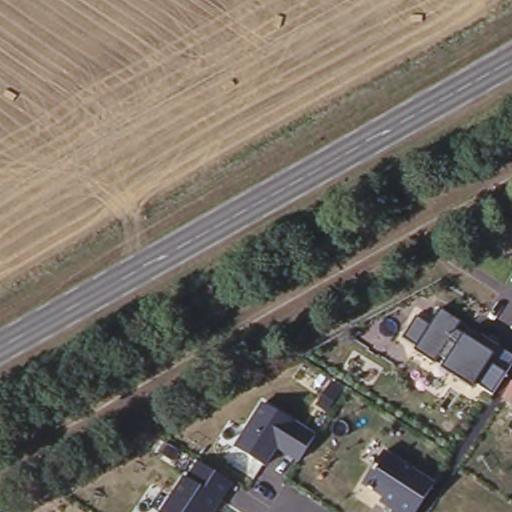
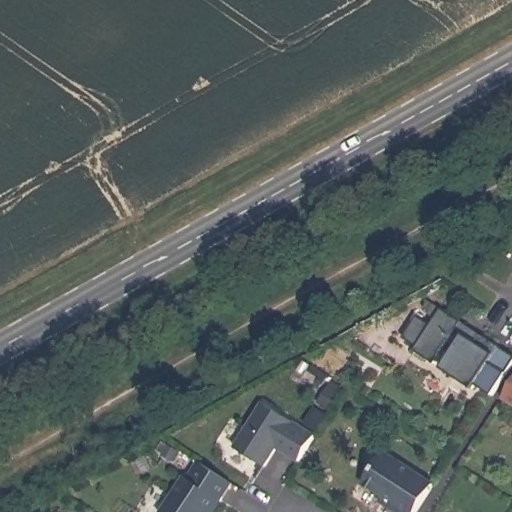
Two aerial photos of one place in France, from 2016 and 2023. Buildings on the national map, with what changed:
unchanged [(418,345),(402,335),(415,314),(432,325),(441,309),(460,323),(457,330),(477,341),(484,336),(500,346),(512,355),(512,364),(493,392),(477,382),(475,386),(445,368),(451,357),(444,355),(436,361),(415,349),(418,345)]
unchanged [(512,391),(512,405),(506,401),(512,391)]
unchanged [(262,404),(316,434),(302,459),(278,447),(265,465),(236,448),(262,404)]
unchanged [(435,483),(415,512),(398,512),(382,502),(383,497),(364,484),(384,450),(435,483)]
unchanged [(190,477),(200,463),(234,484),(215,512),(161,512),(183,476),(190,477)]

